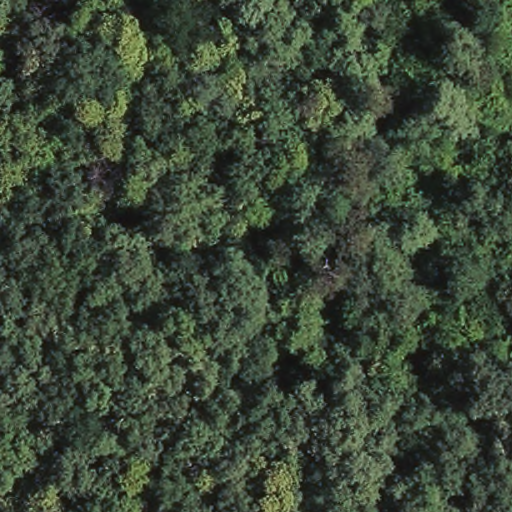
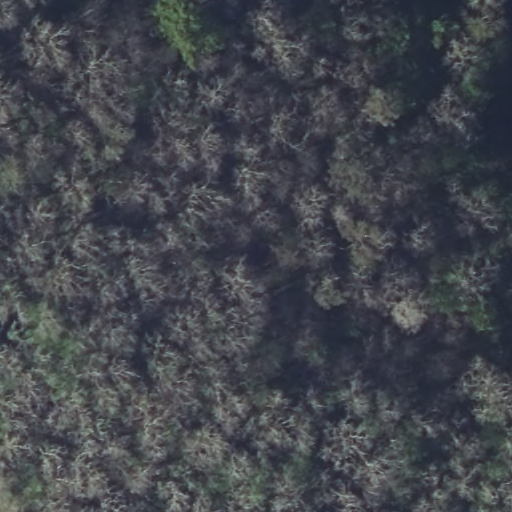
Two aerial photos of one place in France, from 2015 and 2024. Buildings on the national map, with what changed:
[]

